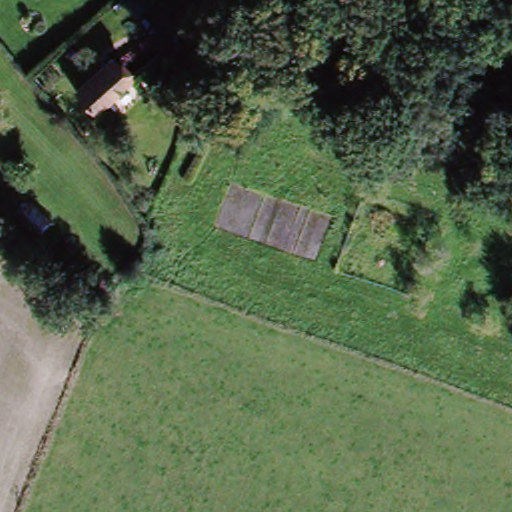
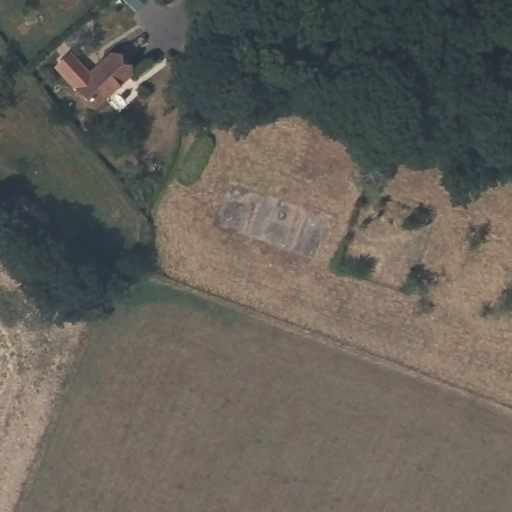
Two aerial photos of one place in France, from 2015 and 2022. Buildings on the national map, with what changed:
unchanged [(117,60),(136,80),(100,114),(81,94),(117,60)]

